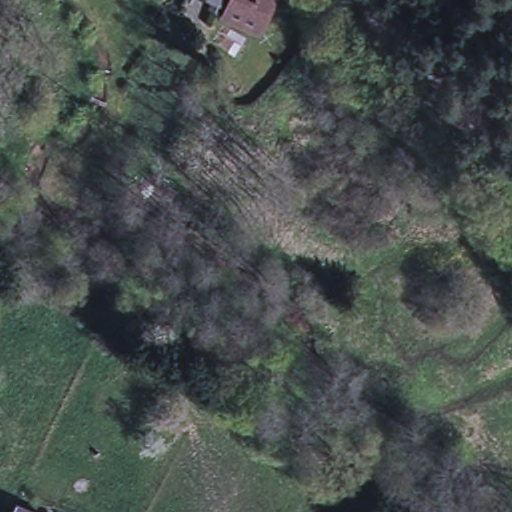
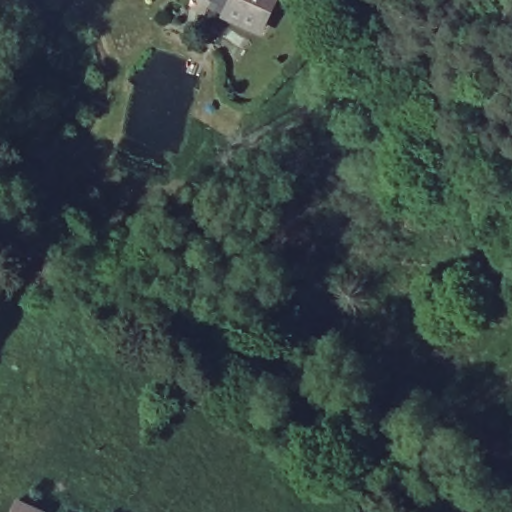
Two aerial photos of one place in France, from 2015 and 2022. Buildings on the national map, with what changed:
unchanged [(258,32),(241,24),(215,12),(220,2),(215,0),(274,0),(258,32)]
unchanged [(47,512),(14,512),(20,498),(48,510),(47,512)]

